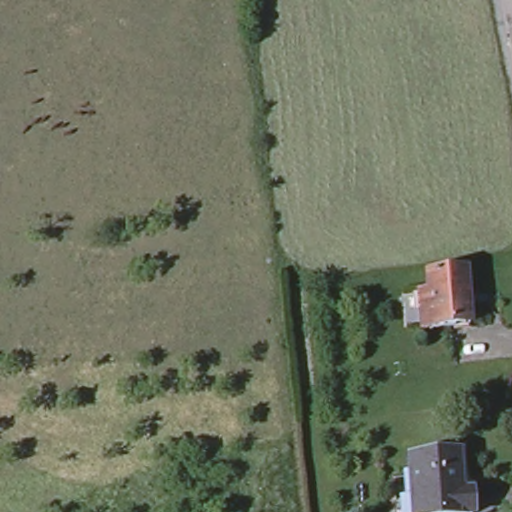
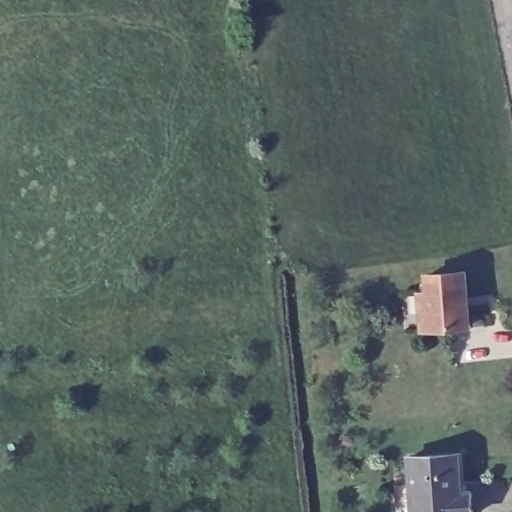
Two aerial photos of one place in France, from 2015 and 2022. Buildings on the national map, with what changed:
unchanged [(430,294),(428,277),(466,273),(472,325),(433,330),(423,331),(418,295),(430,294)]
unchanged [(413,455),(462,450),(466,486),(474,486),(475,511),(467,512),(416,512),(415,494),(413,455)]

